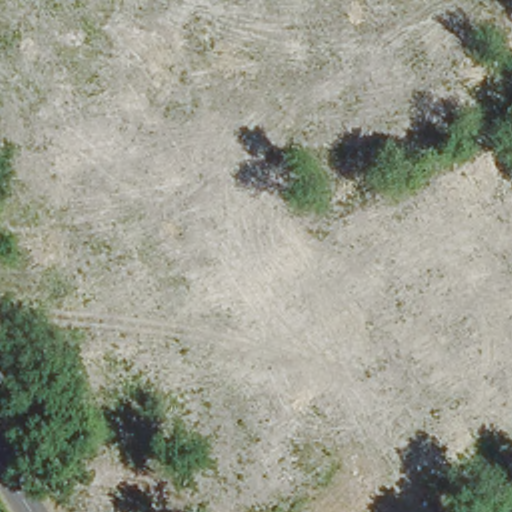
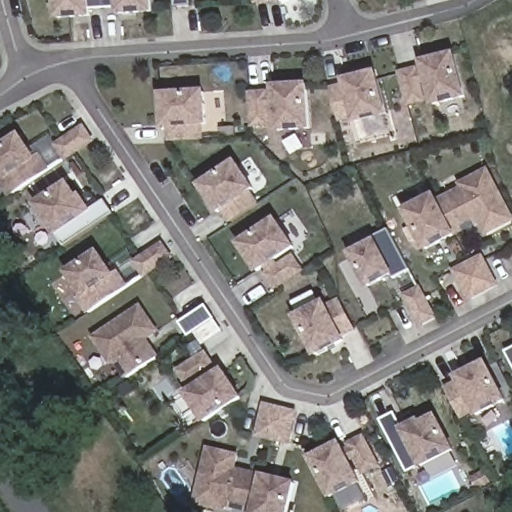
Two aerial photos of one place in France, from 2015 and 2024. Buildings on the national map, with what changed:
new [(92,9),(93,19),(55,21),(54,0),(153,0),(154,14),(116,17),(116,8),(92,9)]
new [(190,5),(175,6),(175,0),(189,0),(190,5)]
new [(253,5),(252,0),(270,0),(253,5)]
new [(278,4),(277,0),(293,0),(278,4)]
new [(417,71),(421,70),(419,61),(454,51),(465,98),(430,106),(424,84),(421,85),(425,103),(405,107),(396,72),(416,66),(417,71)]
new [(342,84),(341,79),(376,71),(388,116),(352,124),(351,120),(338,123),(329,87),(342,84)]
new [(272,95),(272,85),(307,82),(310,131),(274,133),(272,110),(269,110),(270,126),(250,128),(247,92),(269,91),(269,95),(272,95)]
new [(167,143),(167,129),(161,130),(160,93),(206,90),(208,126),(202,126),(203,140),(167,143)]
new [(55,145),(85,125),(95,142),(64,161),(55,145)]
new [(10,198),(0,184),(0,181),(3,179),(0,175),(0,147),(21,134),(35,157),(41,154),(51,169),(10,198)]
new [(229,224),(221,213),(218,216),(197,186),(236,159),(255,189),(251,193),(258,203),(229,224)]
new [(457,237),(425,253),(403,210),(437,193),(439,198),(460,188),(457,183),(488,168),(512,215),(512,223),(485,237),(478,224),(457,237)]
new [(114,215),(65,247),(56,237),(34,204),(68,182),(77,196),(81,194),(91,210),(105,201),(114,215)]
new [(274,291),(264,274),(267,272),(265,268),(257,274),(237,243),(276,218),(295,249),(274,262),(276,264),(294,254),(305,272),(274,291)]
new [(393,279),(392,276),(366,289),(349,253),(376,239),(375,236),(389,230),(410,270),(393,279)]
new [(143,280),(132,262),(161,242),(173,259),(143,280)]
new [(130,286),(87,315),(77,299),(81,297),(65,273),(98,250),(113,273),(120,270),(130,286)]
new [(453,270),(483,255),(498,285),(469,302),(453,270)]
new [(437,318),(419,327),(403,296),(420,286),(437,318)]
new [(343,338),(346,343),(314,359),(293,317),(326,300),(328,304),(340,298),(356,331),(343,338)]
new [(160,357),(126,379),(116,364),(111,368),(91,337),(141,305),(160,334),(148,340),(160,357)]
new [(188,338),(179,323),(205,305),(215,319),(188,338)]
new [(506,351),(512,348),(512,363),(506,351)]
new [(223,368),(242,399),(203,425),(183,394),(188,391),(203,382),(201,378),(184,388),(175,371),(206,351),(216,368),(211,371),(213,374),(223,368)]
new [(456,381),(453,376),(486,360),(507,402),(476,417),(473,413),(461,420),(444,387),(456,381)]
new [(290,446),(256,437),(263,403),(298,411),(290,446)]
new [(436,414),(454,450),(420,467),(407,473),(380,419),(395,412),(403,426),(419,417),(421,421),(436,414)]
new [(359,477),(362,483),(330,499),(308,457),(342,440),(344,445),(364,434),(381,466),(359,477)]
new [(289,512),(243,512),(194,503),(206,445),(240,453),(237,467),(260,474),(297,482),(289,512)]

